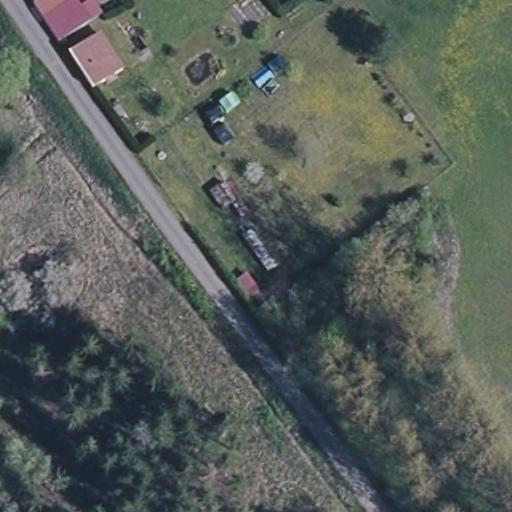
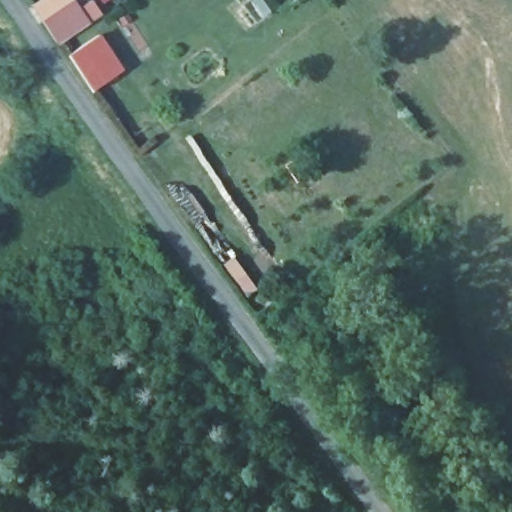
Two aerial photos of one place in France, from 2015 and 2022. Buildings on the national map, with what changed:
unchanged [(42,0),(87,0),(93,9),(61,31),(41,1),(42,0)]
unchanged [(95,32),(118,68),(88,88),(65,53),(95,32)]

